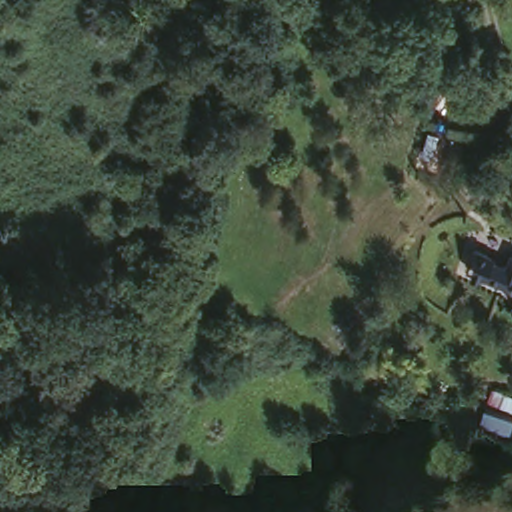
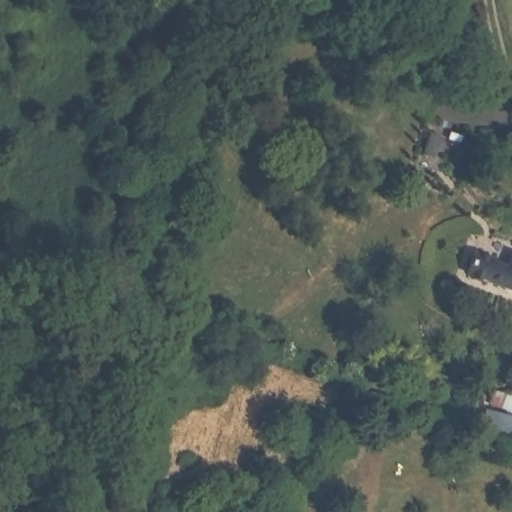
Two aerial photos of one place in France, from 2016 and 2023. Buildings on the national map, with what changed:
unchanged [(361,11),(381,29),(371,42),(350,22),(361,11)]
unchanged [(487,277),(486,282),(476,280),(477,274),(470,272),(474,251),(490,254),(489,259),(512,265),(512,283),(487,277)]
unchanged [(493,367),(512,377),(512,391),(487,379),(493,367)]
unchanged [(482,416),(490,399),(512,410),(512,417),(507,428),(482,416)]

